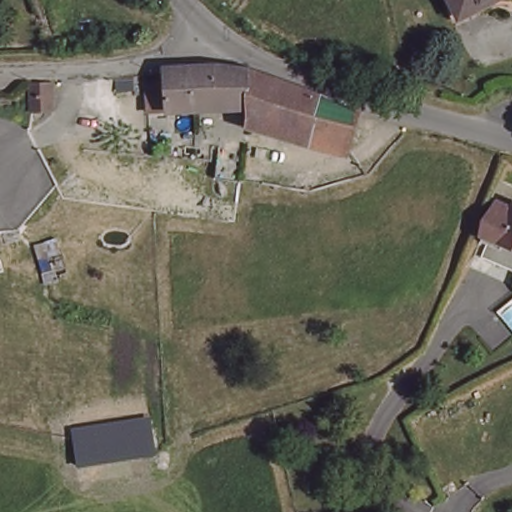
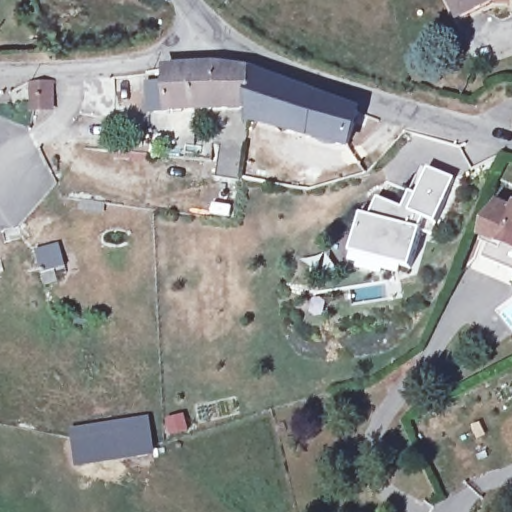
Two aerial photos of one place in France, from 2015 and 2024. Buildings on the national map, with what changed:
unchanged [(447,0),(488,0),(455,16),(447,0)]
unchanged [(488,0),(500,0),(491,5),(488,0)]
unchanged [(244,68),(313,94),(309,131),(249,109),(246,101),(240,101),(143,109),(142,81),(162,80),(162,70),(244,68)]
unchanged [(52,84),(53,110),(30,111),(30,85),(52,84)]
unchanged [(357,112),(346,146),(309,131),(313,94),(357,112)]
new [(239,150),(265,152),(264,188),(236,184),(239,150)]
new [(436,224),(424,219),(410,269),(350,252),(361,214),(369,216),(376,197),(403,207),(409,191),(418,194),(428,169),(454,180),(436,224)]
unchanged [(499,217),(512,222),(512,256),(486,245),(499,217)]
unchanged [(123,428),(131,460),(78,478),(67,441),(123,428)]

